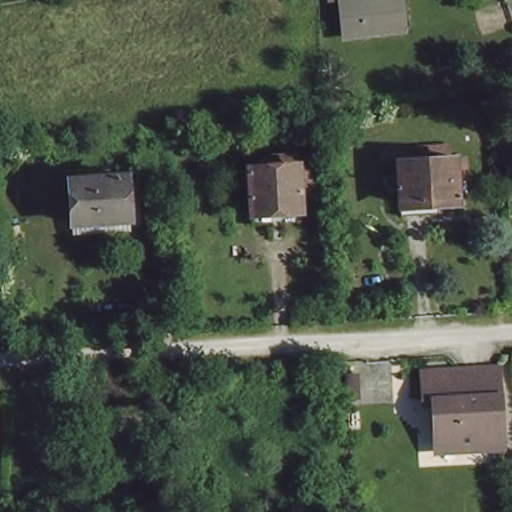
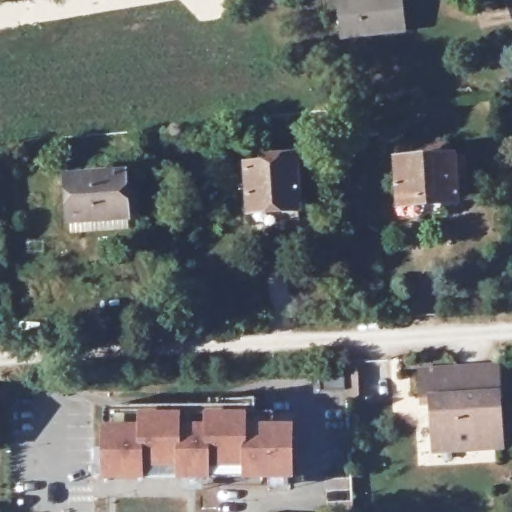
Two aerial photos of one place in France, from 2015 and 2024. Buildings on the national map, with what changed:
unchanged [(345,41),(340,1),(332,1),(328,2),(328,0),(400,0),(403,34),(345,41)]
unchanged [(401,209),(399,165),(399,154),(420,153),(421,164),(458,162),(461,205),(401,209)]
unchanged [(311,161),(313,187),(302,187),(303,214),(255,216),(252,166),(267,165),(267,160),(301,158),(301,161),(311,161)]
unchanged [(121,182),(132,181),(134,224),(80,227),(77,184),(96,182),(96,177),(120,177),(121,182)]
unchanged [(498,447),(432,450),(429,401),(422,403),(420,374),(492,369),(498,447)]
unchanged [(356,396),(344,397),(343,377),(354,376),(356,396)]
new [(135,428),(135,415),(180,416),(180,427),(200,427),(200,416),(244,417),(244,426),(291,429),(291,484),(240,484),(240,481),(206,482),(207,486),(174,485),(143,483),(143,488),(100,486),(100,426),(135,428)]

